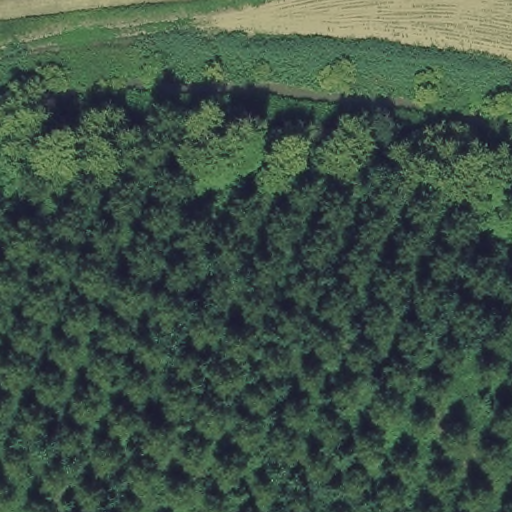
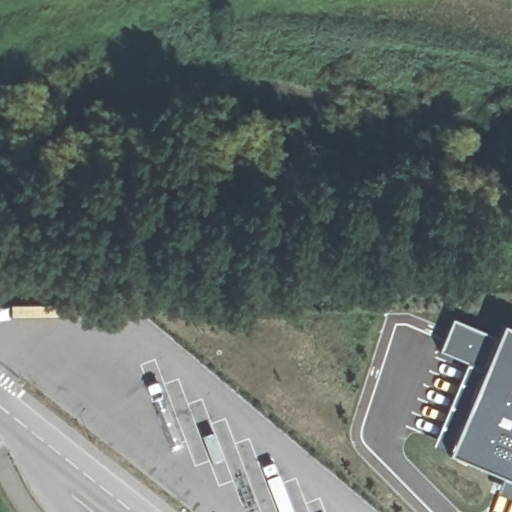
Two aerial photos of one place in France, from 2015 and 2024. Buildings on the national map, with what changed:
new [(505,323),(512,326),(512,482),(435,451),(471,360),(444,349),(455,318),(500,337),(505,323)]

